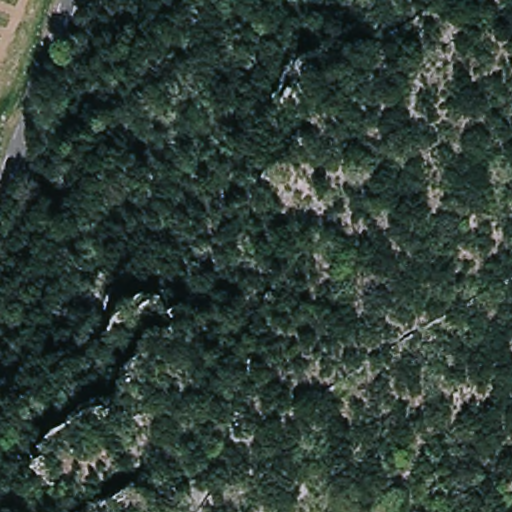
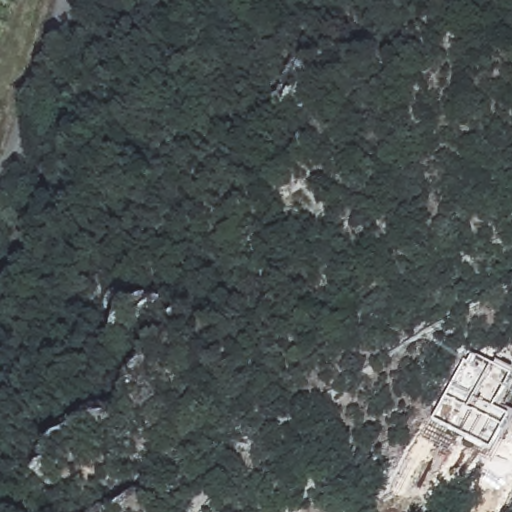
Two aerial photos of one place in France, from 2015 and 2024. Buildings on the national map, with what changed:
new [(432,421),(465,362),(467,364),(472,355),(512,378),(494,411),(511,421),(491,453),(432,421)]

